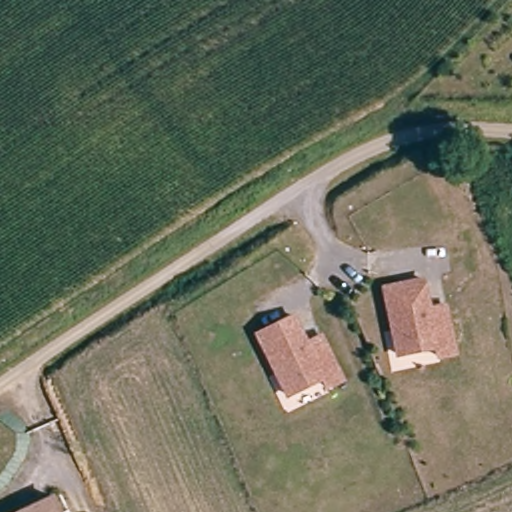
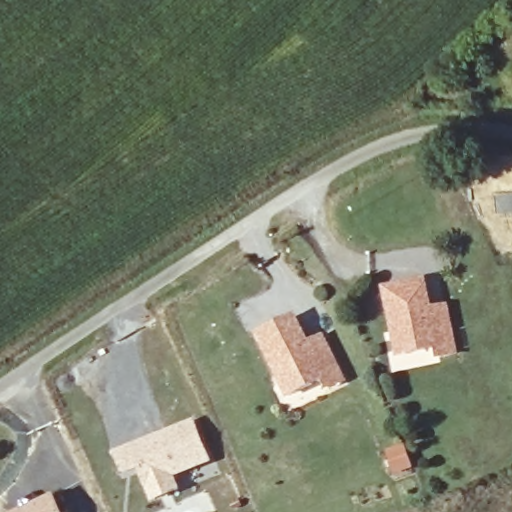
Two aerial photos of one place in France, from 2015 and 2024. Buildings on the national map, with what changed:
unchanged [(436,305),(455,302),(464,356),(440,360),(437,345),(399,352),(387,282),(431,275),(436,305)]
unchanged [(299,310),(313,340),(329,333),(352,383),(332,390),(327,380),(291,394),(260,328),(299,310)]
new [(213,462),(177,477),(182,491),(152,505),(139,470),(126,475),(116,452),(195,419),(213,462)]
unchanged [(71,512),(12,512),(60,489),(71,512)]

